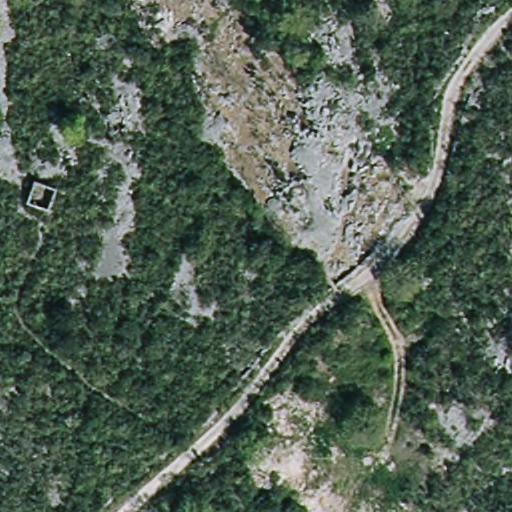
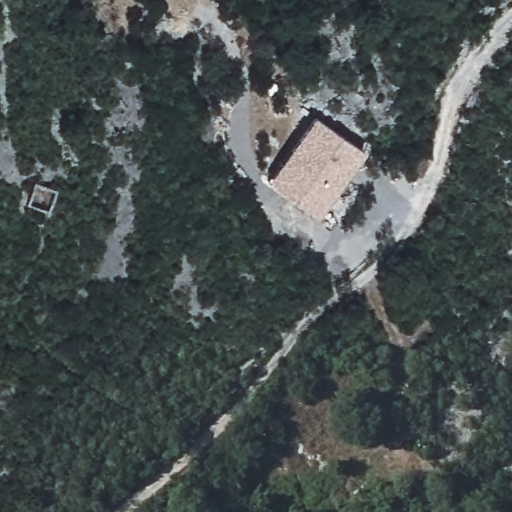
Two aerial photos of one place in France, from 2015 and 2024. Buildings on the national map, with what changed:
new [(364,151),(318,217),(268,181),(314,115),(364,151)]

